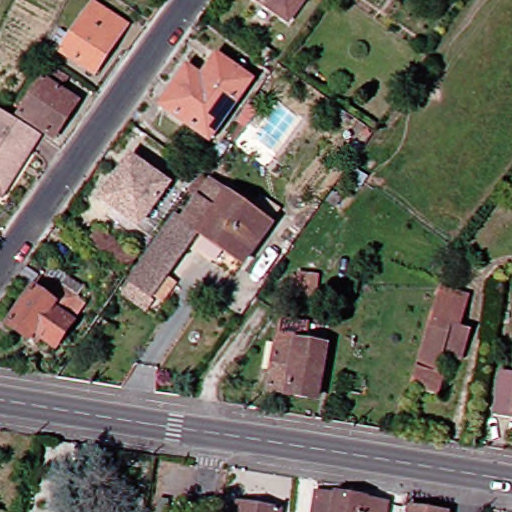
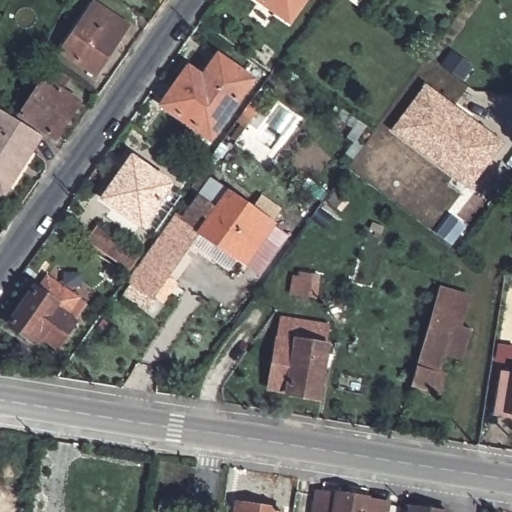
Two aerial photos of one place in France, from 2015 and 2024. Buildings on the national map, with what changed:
unchanged [(292,22),(262,0),(309,0),(292,22)]
unchanged [(102,75),(67,51),(68,49),(59,42),(69,27),(79,34),(100,5),(132,27),(124,40),(112,59),(102,75)]
unchanged [(257,85),(217,142),(172,109),(197,74),(211,84),(227,62),(257,85)]
unchanged [(49,134),(22,115),(54,69),(70,81),(64,90),(81,101),(69,119),(55,139),(49,134)]
new [(426,85),(504,142),(469,190),(391,130),(426,85)]
unchanged [(0,109),(11,116),(12,117),(0,141),(0,109)]
unchanged [(44,138),(33,153),(28,150),(17,166),(0,157),(0,141),(12,117),(42,136),(44,138)]
unchanged [(227,140),(237,125),(243,130),(234,144),(227,140)]
unchanged [(22,170),(2,200),(0,198),(0,157),(17,166),(22,170)]
unchanged [(172,185),(144,225),(107,199),(135,159),(172,185)]
unchanged [(152,315),(129,295),(184,218),(190,222),(204,203),(197,199),(222,165),(230,170),(218,186),(281,231),(250,269),(206,239),(152,315)]
unchanged [(136,277),(96,247),(106,234),(146,263),(136,277)]
unchanged [(292,275),(315,279),(313,298),(288,295),(292,275)]
unchanged [(39,342),(36,346),(9,326),(36,290),(42,295),(52,280),(84,303),(72,321),(81,328),(62,352),(51,343),(47,348),(39,342)]
unchanged [(447,360),(442,377),(418,371),(442,291),(472,301),(463,331),(473,335),(467,356),(465,365),(447,360)]
unchanged [(101,331),(96,326),(101,320),(106,325),(101,331)]
unchanged [(317,325),(314,344),(333,348),(325,400),(295,395),(295,392),(276,388),(287,320),(317,325)]
unchanged [(512,374),(512,417),(505,416),(511,374),(512,374)]
unchanged [(167,506),(157,505),(160,484),(170,485),(167,506)]
unchanged [(406,507),(405,512),(318,512),(321,495),(340,497),(340,494),(371,500),(370,502),(406,507)]
unchanged [(279,512),(233,512),(234,505),(279,511),(279,512)]
unchanged [(436,512),(413,512),(413,508),(436,512)]

